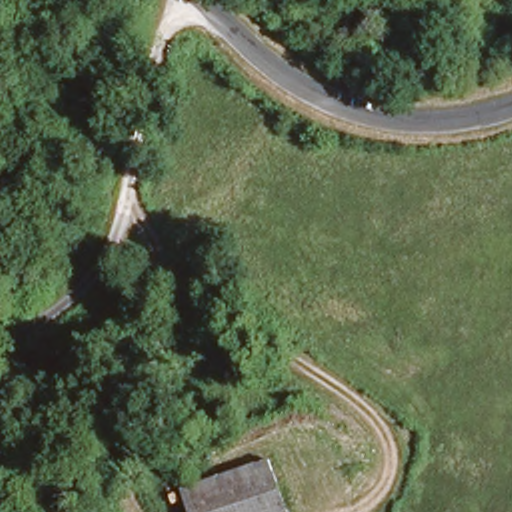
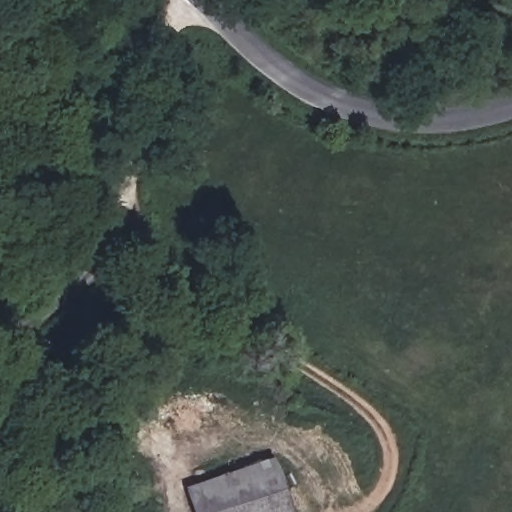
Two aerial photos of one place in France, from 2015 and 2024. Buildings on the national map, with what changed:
unchanged [(270,446),(293,512),(190,512),(177,477),(270,446)]

